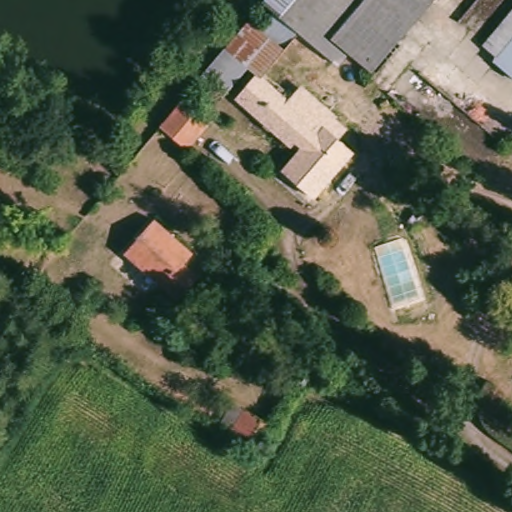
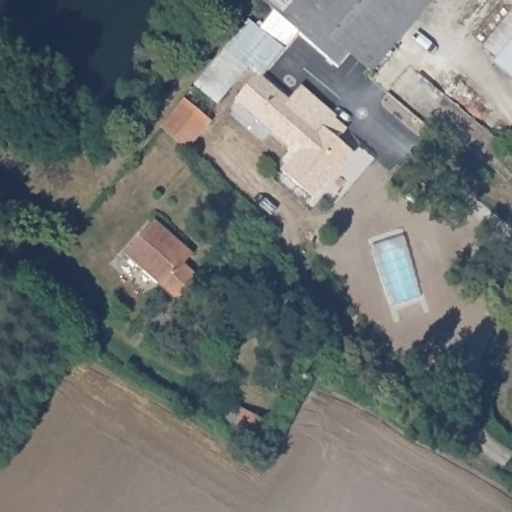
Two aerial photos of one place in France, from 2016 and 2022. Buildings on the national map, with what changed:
unchanged [(250,21),(260,30),(275,13),(266,5),(270,0),(426,0),(368,69),(346,49),(334,62),(298,31),(254,82),(285,110),(295,98),(326,125),(315,137),(344,162),(304,207),(275,181),(292,161),(220,97),(199,78),(221,55),(230,45),(250,21)]
unchanged [(495,64),(477,49),(512,7),(512,44),(495,64)]
unchanged [(495,64),(512,44),(512,77),(495,64)]
unchanged [(211,121),(188,147),(184,151),(159,129),(184,97),(211,121)]
unchanged [(151,220),(195,256),(187,265),(200,277),(179,301),(124,254),(151,220)]

